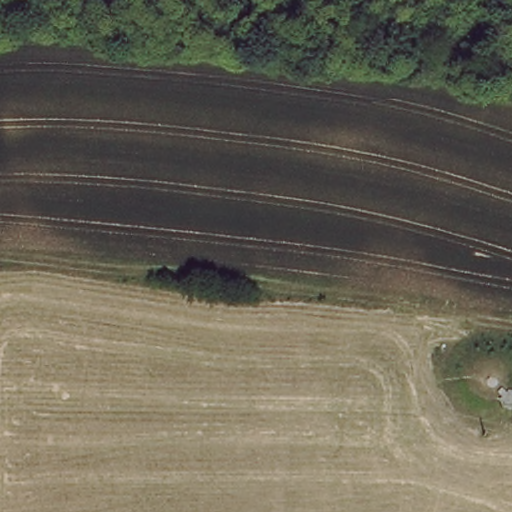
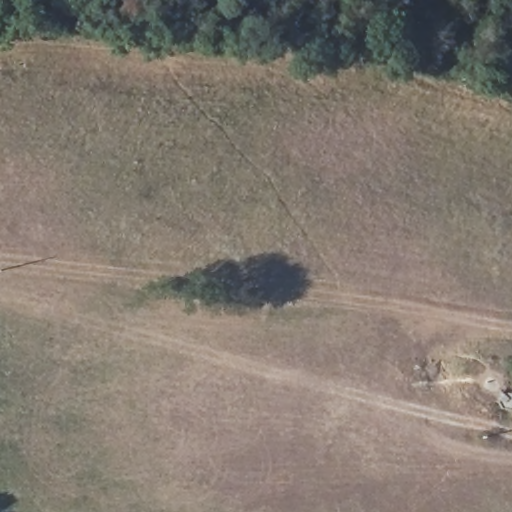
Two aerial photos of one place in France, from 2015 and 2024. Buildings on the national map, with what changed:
[]

